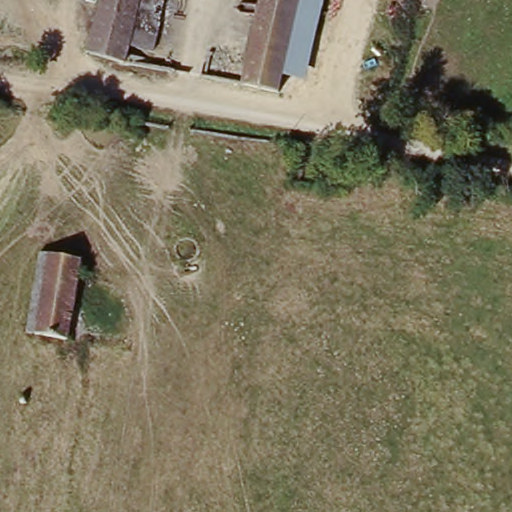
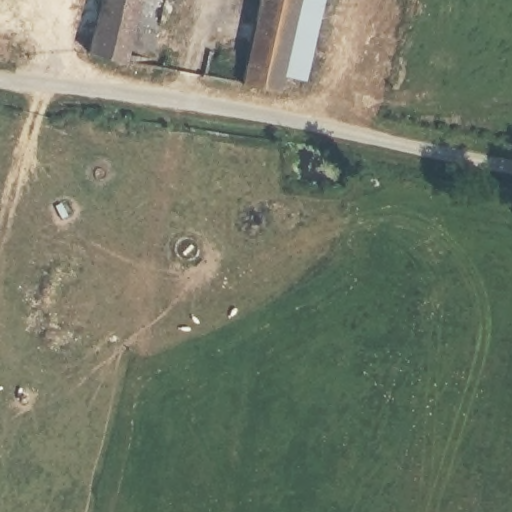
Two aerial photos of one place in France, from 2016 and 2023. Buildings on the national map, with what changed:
unchanged [(155,60),(130,54),(128,70),(86,57),(101,0),(169,0),(155,60)]
unchanged [(247,69),(262,0),(304,0),(286,82),(281,104),(278,103),(242,95),(247,69)]
unchanged [(305,86),(286,82),(304,0),(324,0),(305,86)]
demolished [(43,256),(83,261),(70,342),(31,338),(43,256)]

